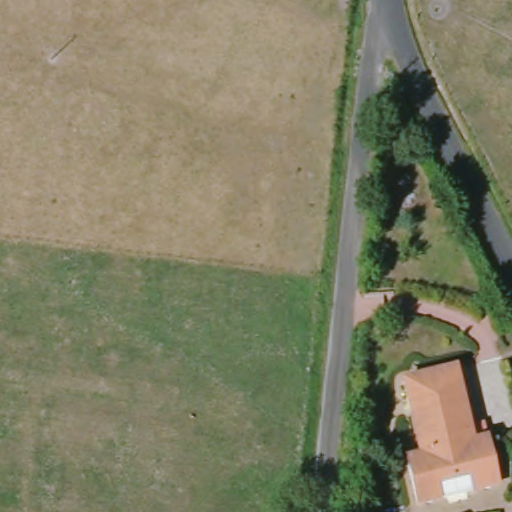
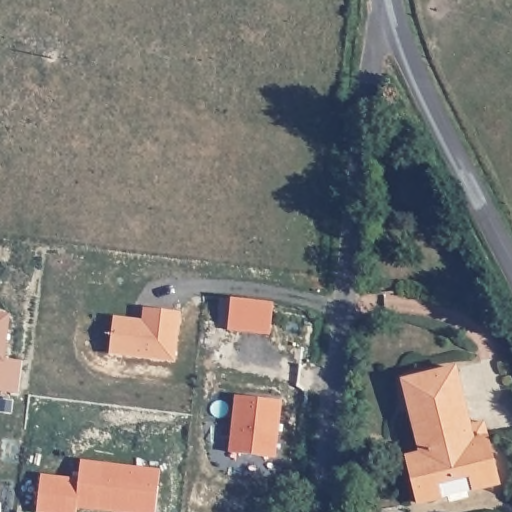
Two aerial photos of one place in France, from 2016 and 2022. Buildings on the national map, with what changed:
new [(230,328),(233,299),(273,304),(269,333),(230,328)]
new [(110,354),(114,317),(143,321),(144,308),(182,314),(176,361),(110,354)]
unchanged [(421,457),(399,386),(445,373),(461,428),(480,423),(485,439),(499,483),(417,509),(404,462),(421,457)]
new [(229,451),(236,396),(284,402),(277,457),(229,451)]
new [(78,512),(38,512),(41,475),(78,479),(80,461),(160,470),(155,512),(111,512),(79,508),(78,512)]

